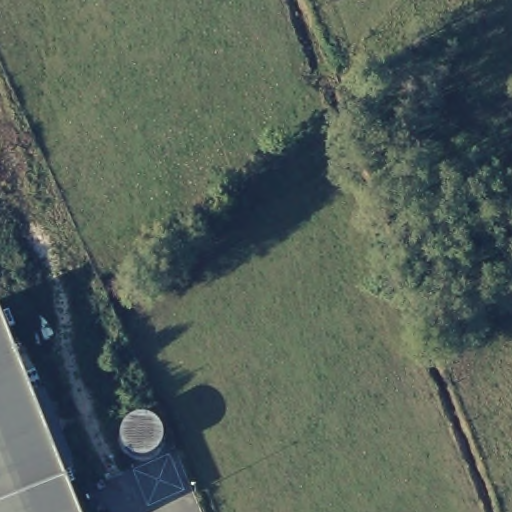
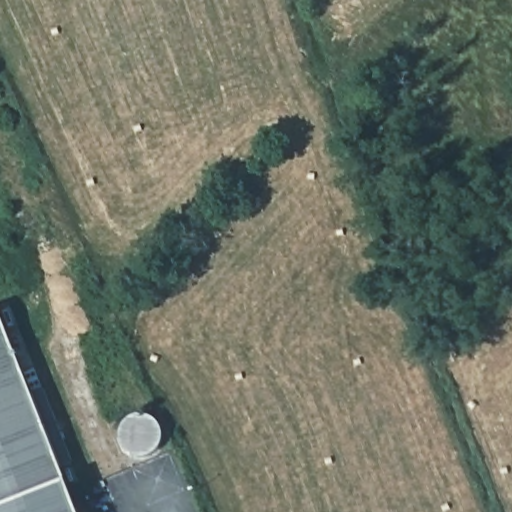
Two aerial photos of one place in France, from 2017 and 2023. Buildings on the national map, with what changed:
unchanged [(34,397),(46,391),(73,464),(62,468),(67,483),(78,512),(0,512),(0,313),(34,397)]
unchanged [(139,416),(146,417),(154,421),(161,427),(165,441),(160,454),(153,459),(145,460),(136,459),(130,457),(123,451),(120,444),(121,430),(132,418),(139,416)]

